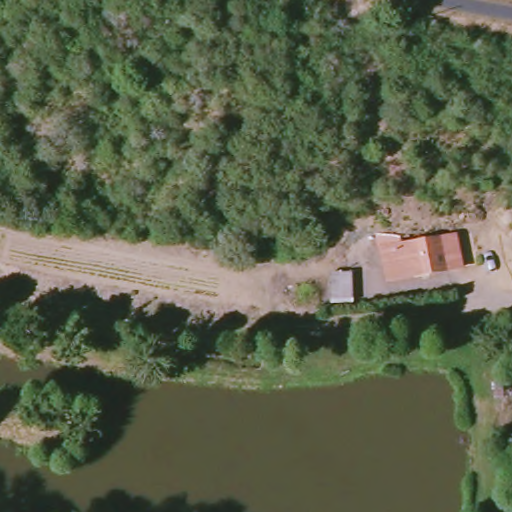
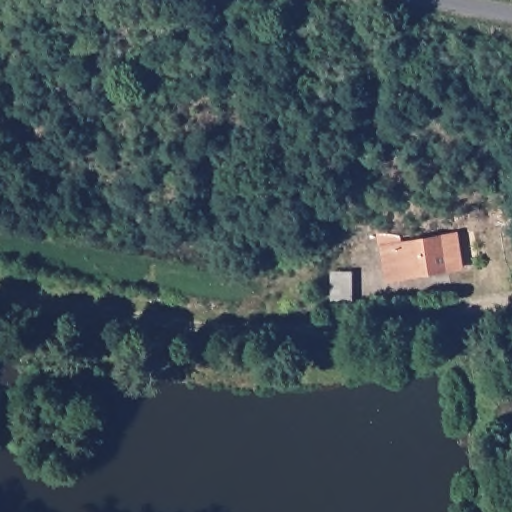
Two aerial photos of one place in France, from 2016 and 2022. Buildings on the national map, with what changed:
unchanged [(457,238),(461,270),(429,274),(428,267),(414,269),(416,276),(389,279),(384,235),(401,233),(402,244),(457,238)]
unchanged [(339,260),(358,262),(356,292),(336,291),(339,260)]

